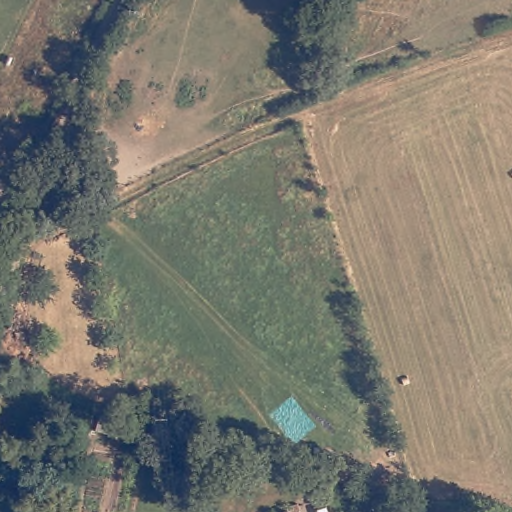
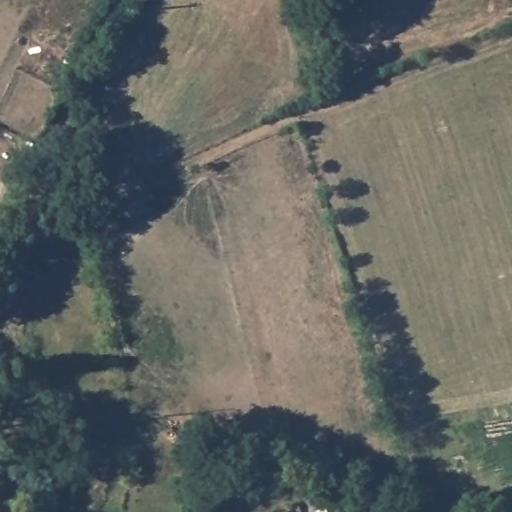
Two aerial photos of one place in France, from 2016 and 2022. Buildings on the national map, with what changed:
unchanged [(303,132),(311,156),(291,161),(285,141),(303,132)]

